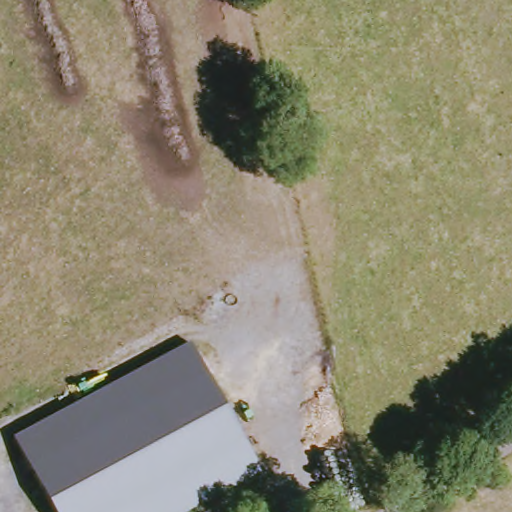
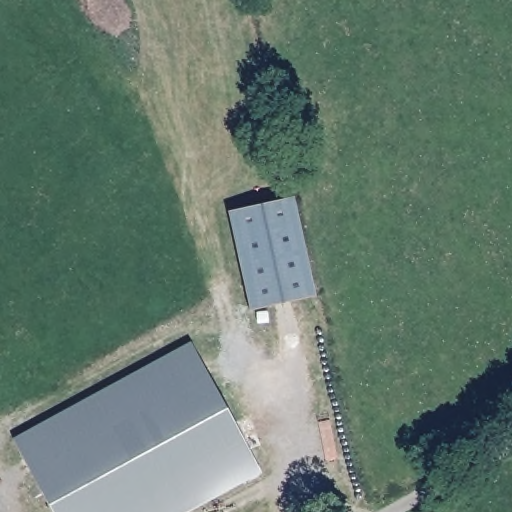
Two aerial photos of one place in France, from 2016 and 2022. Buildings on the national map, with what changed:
new [(227,210),(293,195),(315,297),(249,310),(227,210)]
unchanged [(191,340),(265,475),(194,512),(53,512),(12,437),(191,340)]

